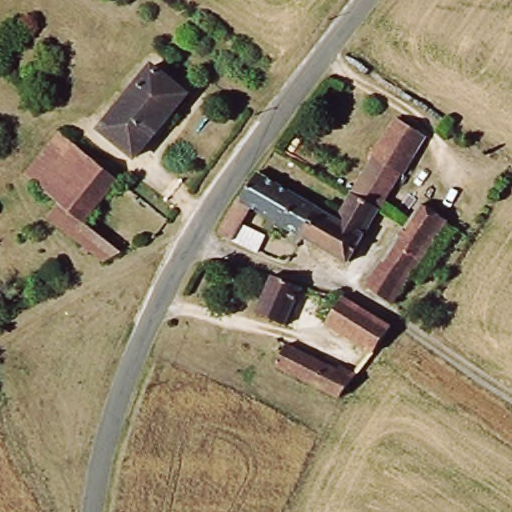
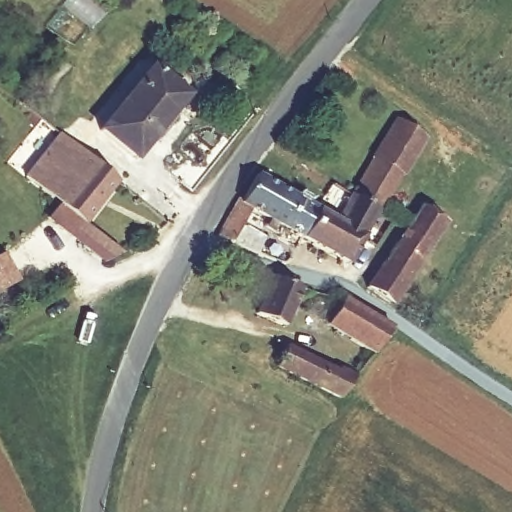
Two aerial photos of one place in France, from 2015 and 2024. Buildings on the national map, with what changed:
unchanged [(105,128),(154,66),(188,92),(138,154),(105,128)]
unchanged [(356,193),(376,163),(373,160),(402,120),(422,132),(399,168),(404,172),(383,209),(356,193)]
unchanged [(49,216),(59,203),(29,179),(64,136),(121,178),(88,221),(129,254),(110,263),(49,216)]
unchanged [(220,233),(241,199),(246,201),(262,174),(322,207),(305,239),(300,250),(294,245),(298,237),(254,212),(246,227),(264,237),(257,252),(220,233)]
unchanged [(340,217),(356,193),(383,209),(351,266),(305,239),(322,207),(340,217)]
unchanged [(444,222),(392,300),(373,284),(392,255),(423,208),(444,222)]
new [(20,280),(0,291),(0,254),(4,251),(20,280)]
unchanged [(262,312),(278,275),(305,287),(289,325),(262,312)]
unchanged [(395,326),(380,351),(331,327),(343,298),(395,326)]
unchanged [(361,382),(345,399),(281,365),(294,344),(361,382)]

